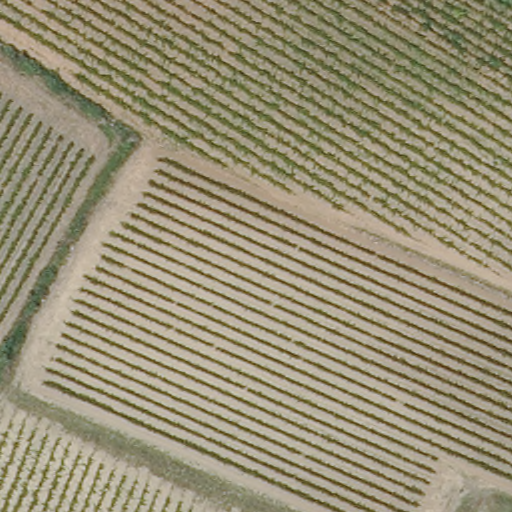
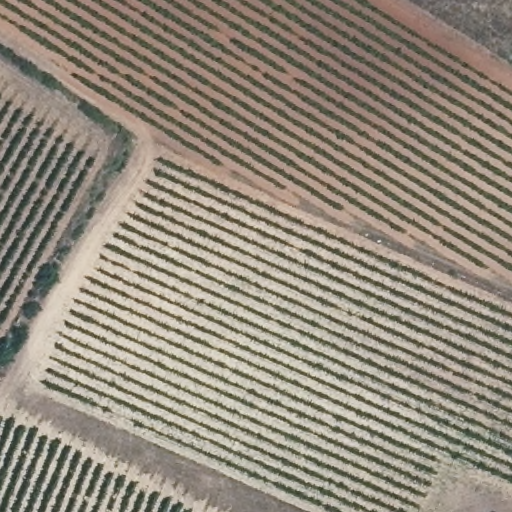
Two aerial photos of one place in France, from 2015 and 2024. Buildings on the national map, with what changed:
[]

